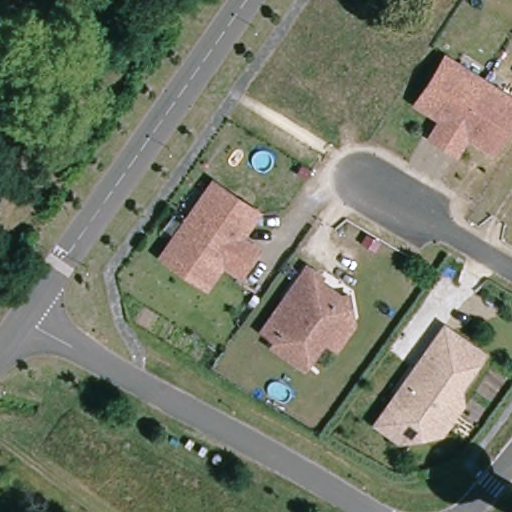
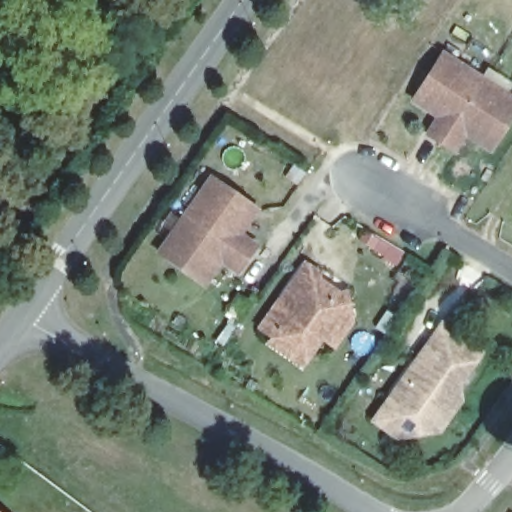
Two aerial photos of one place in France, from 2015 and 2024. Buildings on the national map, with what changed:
unchanged [(512,96),(512,116),(491,149),(465,132),(453,150),(428,133),(439,116),(413,100),(442,52),(512,96)]
unchanged [(259,205),(241,230),(258,242),(241,267),(223,255),(206,280),(160,248),(214,172),(259,205)]
unchanged [(287,290),(308,258),(323,270),(321,272),(332,282),(330,285),(335,290),(352,289),(355,312),(344,313),(328,333),(327,332),(307,360),(274,338),(277,333),(263,323),(287,290)]
unchanged [(444,321),(482,348),(452,390),(462,398),(441,426),(396,433),(373,416),(387,397),(420,355),(444,321)]

